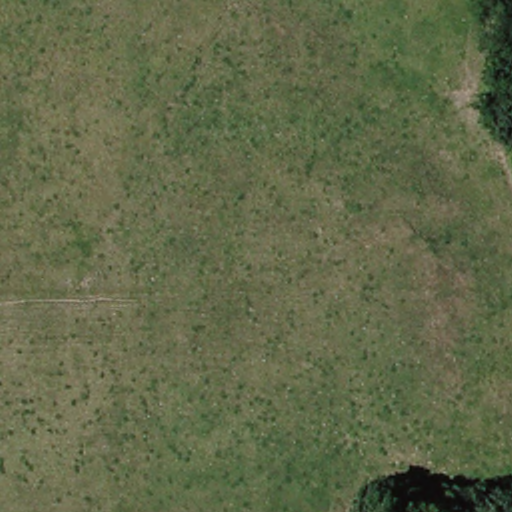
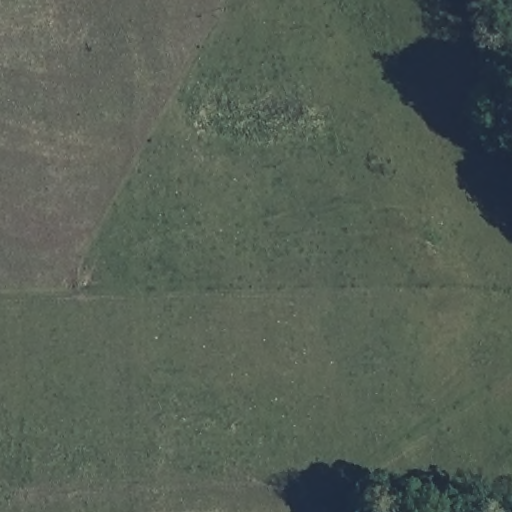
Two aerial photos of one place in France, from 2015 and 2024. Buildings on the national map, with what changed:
[]

